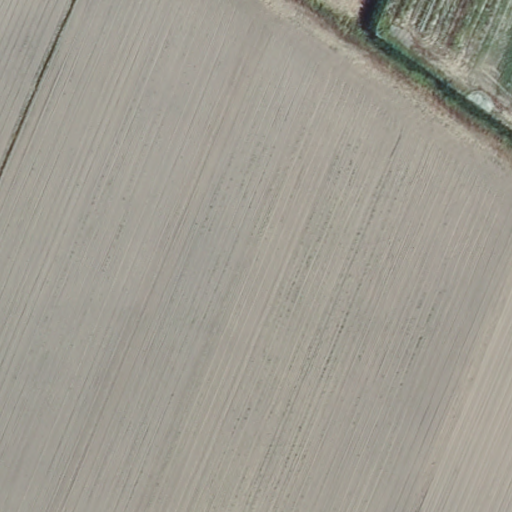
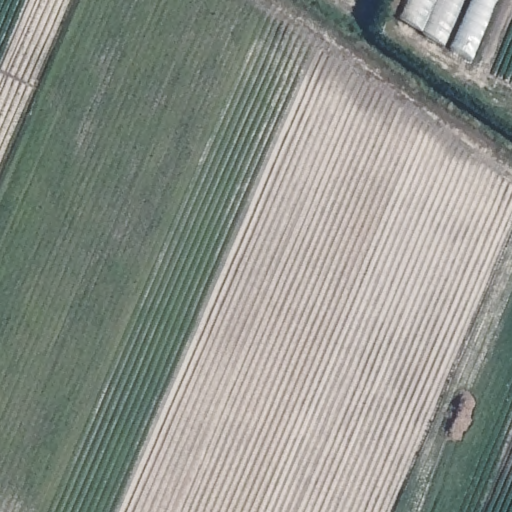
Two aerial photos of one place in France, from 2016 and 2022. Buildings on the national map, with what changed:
demolished [(454,47),(458,40),(401,12),(406,0),(498,0),(474,56),(454,47)]

